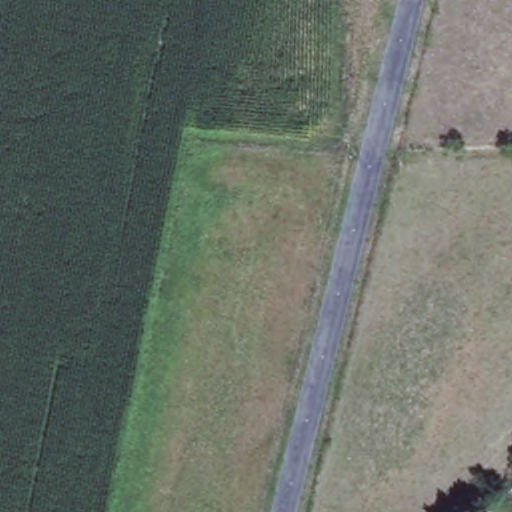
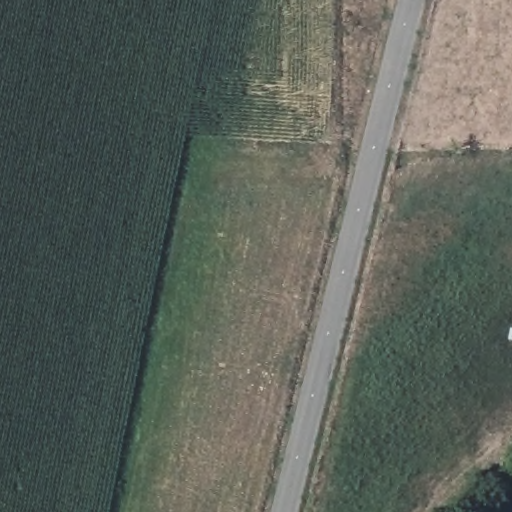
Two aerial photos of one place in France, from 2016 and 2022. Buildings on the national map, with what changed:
unchanged [(512,512),(487,512),(512,491),(512,512)]

